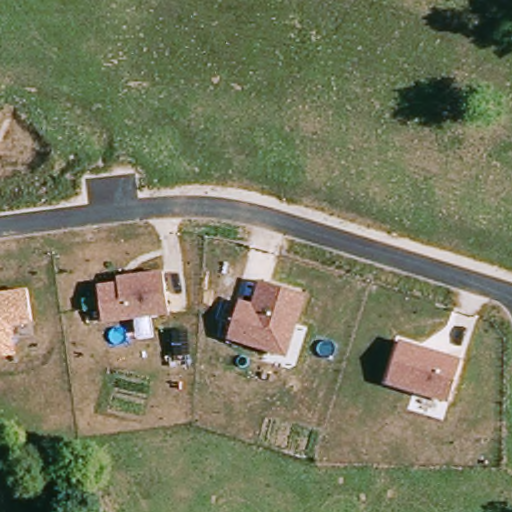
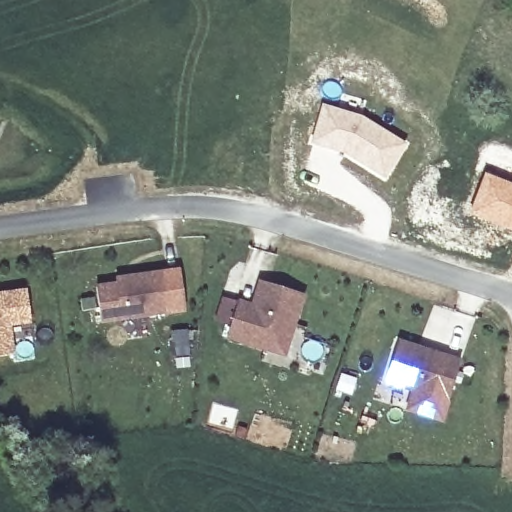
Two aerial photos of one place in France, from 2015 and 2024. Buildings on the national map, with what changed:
new [(321,102),(363,114),(409,142),(386,181),(341,154),(308,142),(321,102)]
new [(512,182),(512,230),(468,212),(484,171),(512,182)]
unchanged [(98,289),(118,285),(117,277),(164,271),(170,313),(103,323),(98,289)]
unchanged [(238,296),(254,301),(260,278),(307,294),(289,357),(226,339),(238,296)]
unchanged [(28,288),(33,323),(13,325),(16,353),(0,355),(0,292),(28,288)]
unchanged [(399,339),(464,359),(450,403),(385,386),(399,339)]

